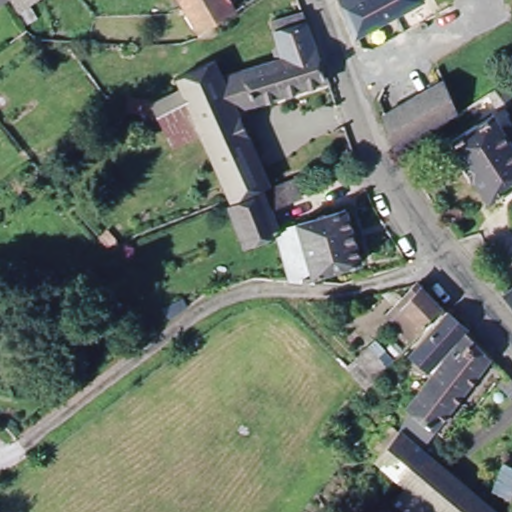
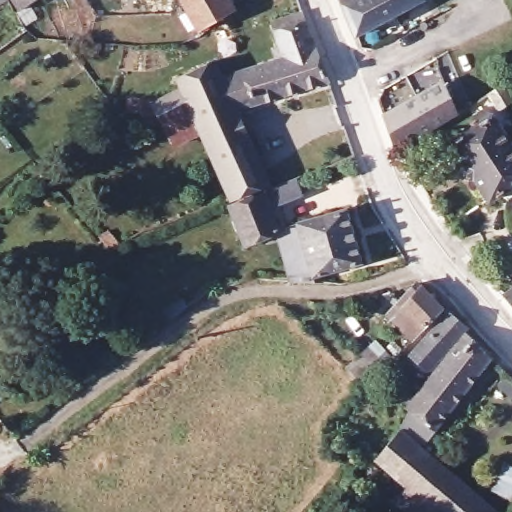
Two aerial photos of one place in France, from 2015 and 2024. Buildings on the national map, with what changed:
unchanged [(0,4),(0,0),(6,0),(0,4)]
unchanged [(15,10),(9,0),(33,0),(15,10)]
unchanged [(235,7),(204,30),(188,0),(231,0),(235,7)]
unchanged [(406,19),(357,44),(340,5),(349,0),(420,0),(425,10),(406,19)]
unchanged [(175,119),(160,126),(149,102),(177,87),(172,75),(214,55),(222,71),(284,51),(271,15),(303,4),(330,72),(239,110),(273,188),(235,206),(203,140),(190,145),(175,119)]
unchanged [(394,150),(381,112),(442,78),(460,110),(394,150)]
unchanged [(510,100),(507,101),(494,110),(483,92),(500,83),(510,100)]
unchanged [(479,195),(449,144),(475,126),(471,120),(485,110),(512,152),(512,186),(511,186),(487,204),(480,194),(479,195)]
unchanged [(246,250),(231,209),(235,206),(273,188),(295,176),(301,191),(272,206),(282,232),(280,235),(246,250)]
unchanged [(280,235),(282,232),(349,204),(365,258),(332,268),(333,278),(290,274),(280,235)]
unchanged [(512,300),(505,292),(512,287),(512,300)]
unchanged [(399,318),(409,308),(428,289),(448,308),(424,333),(418,338),(399,318)]
unchanged [(432,370),(414,351),(455,315),(471,330),(466,335),(432,370)]
unchanged [(434,512),(408,512),(400,505),(413,492),(380,460),(405,432),(435,372),(466,335),(495,360),(420,450),(489,512),(436,512),(435,511),(434,512)]
unchanged [(365,359),(367,360),(377,351),(393,370),(383,378),(385,380),(373,391),(354,370),(365,359)]

